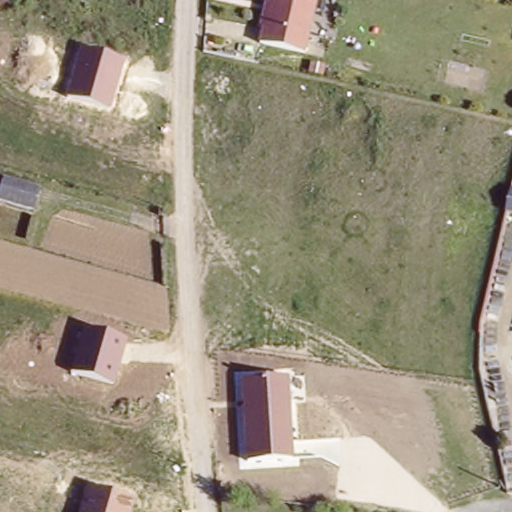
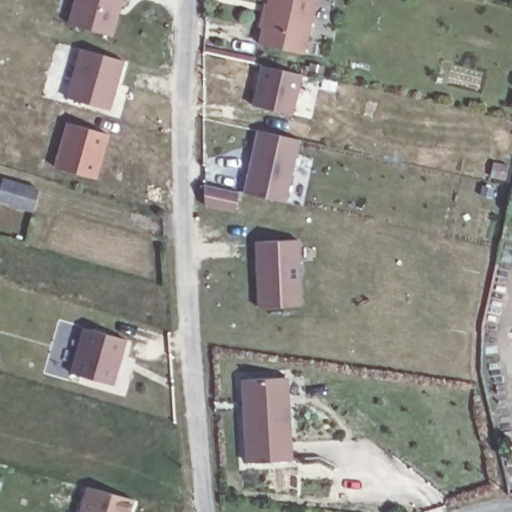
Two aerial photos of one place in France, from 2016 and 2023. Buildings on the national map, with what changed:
new [(124,0),(113,36),(68,23),(75,0),(124,0)]
unchanged [(315,0),(303,52),(259,42),(268,0),(315,0)]
unchanged [(125,59),(110,110),(65,97),(79,47),(125,59)]
new [(263,64),(303,73),(293,115),(253,105),(263,64)]
new [(256,129),(299,138),(285,201),(242,191),(256,129)]
unchanged [(30,212),(0,203),(0,176),(38,187),(30,212)]
new [(238,190),(233,210),(203,203),(203,183),(238,190)]
unchanged [(512,194),(512,212),(508,211),(512,194)]
new [(298,241),(300,307),(258,308),(255,242),(298,241)]
unchanged [(127,339),(114,384),(70,373),(83,329),(127,339)]
unchanged [(289,376),(293,459),(246,462),(241,378),(289,376)]
unchanged [(134,497),(130,512),(78,512),(85,486),(134,497)]

